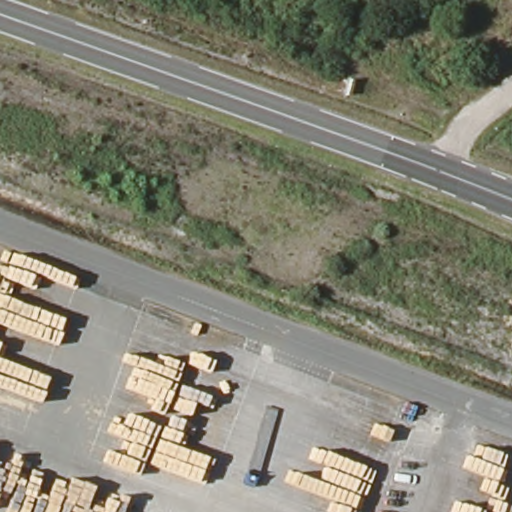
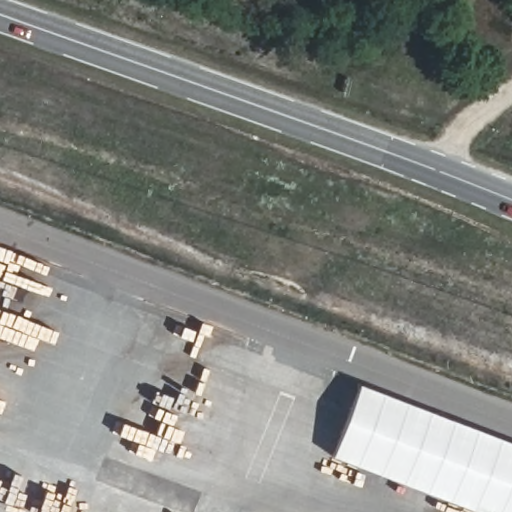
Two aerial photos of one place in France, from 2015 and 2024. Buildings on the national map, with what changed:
new [(512,441),(512,512),(490,512),(340,455),(365,386),(512,441)]

